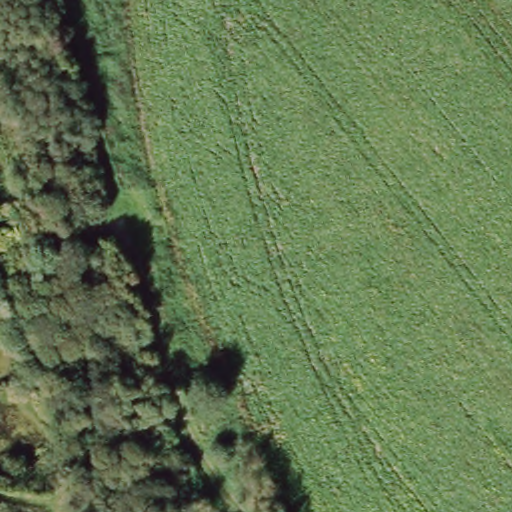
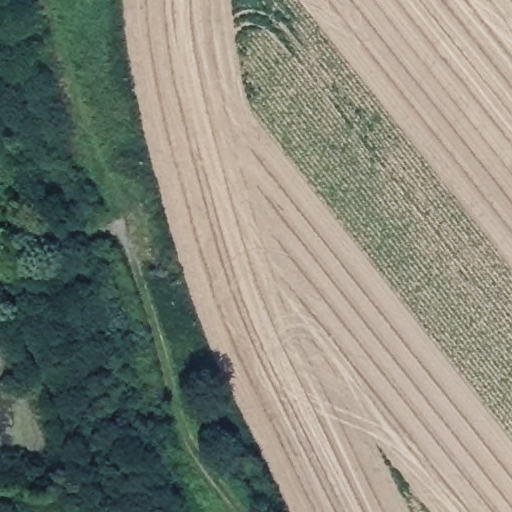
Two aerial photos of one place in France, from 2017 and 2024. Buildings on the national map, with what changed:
unchanged [(0,265),(0,253),(5,263),(0,265)]

